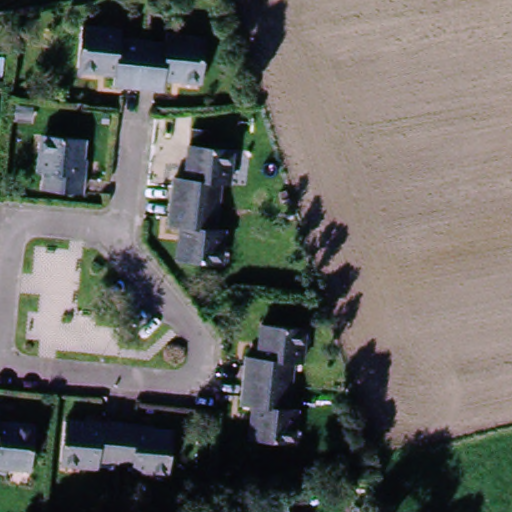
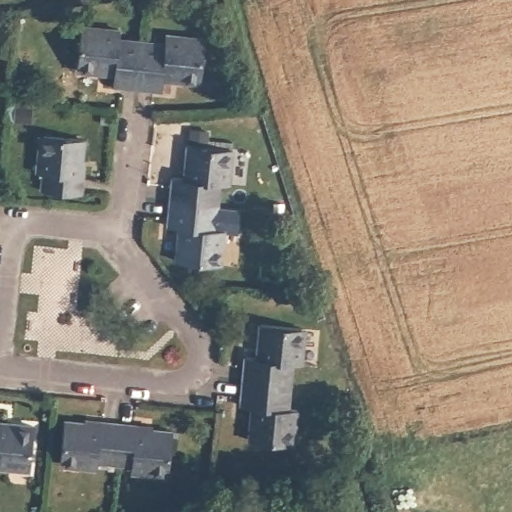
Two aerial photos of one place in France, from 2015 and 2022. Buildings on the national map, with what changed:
unchanged [(113,71),(113,76),(93,73),(93,62),(73,60),(78,16),(103,19),(101,27),(141,32),(136,73),(113,71)]
unchanged [(206,31),(201,75),(178,72),(177,83),(156,81),(156,76),(136,73),(141,32),(181,37),(183,28),(206,31)]
unchanged [(45,137),(84,141),(81,165),(74,164),(72,179),(79,180),(78,196),(38,192),(40,175),(33,175),(35,158),(43,159),(45,137)]
unchanged [(187,179),(191,146),(228,150),(226,169),(234,169),(231,187),(219,187),(217,209),(171,202),(174,178),(187,179)]
unchanged [(214,233),(223,234),(221,253),(214,253),(213,268),(174,264),(179,230),(168,229),(171,202),(217,209),(214,233)]
unchanged [(301,346),(306,347),(304,365),(293,363),(289,387),(243,383),(246,357),(259,360),(264,327),(303,330),(301,346)]
unchanged [(286,413),(298,414),(296,431),(290,430),(288,448),(248,443),(253,411),(241,410),(243,383),(289,387),(286,413)]
unchanged [(28,464),(11,462),(11,467),(0,467),(0,419),(33,423),(28,464)]
unchanged [(95,465),(94,472),(78,471),(79,462),(57,460),(63,421),(84,423),(83,432),(99,433),(100,425),(117,427),(113,467),(95,465)]
unchanged [(146,470),(146,477),(129,476),(130,468),(113,467),(117,427),(135,428),(134,437),(149,438),(151,430),(172,432),(167,472),(146,470)]

